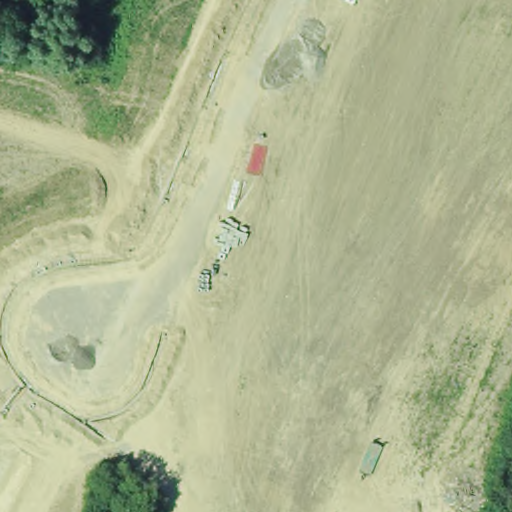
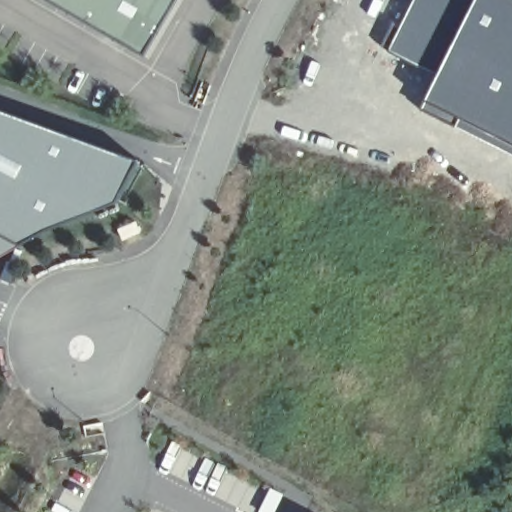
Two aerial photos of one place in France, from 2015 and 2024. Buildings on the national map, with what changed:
new [(46,0),(178,0),(145,57),(46,0)]
new [(475,0),(473,2),(436,75),(387,50),(412,0),(475,0)]
new [(436,75),(473,2),(475,0),(512,0),(512,153),(501,148),(420,108),(425,100),(436,75)]
new [(69,210),(44,229),(0,213),(0,110),(140,160),(118,203),(69,210)]
new [(136,221),(140,230),(123,238),(118,228),(136,221)]

